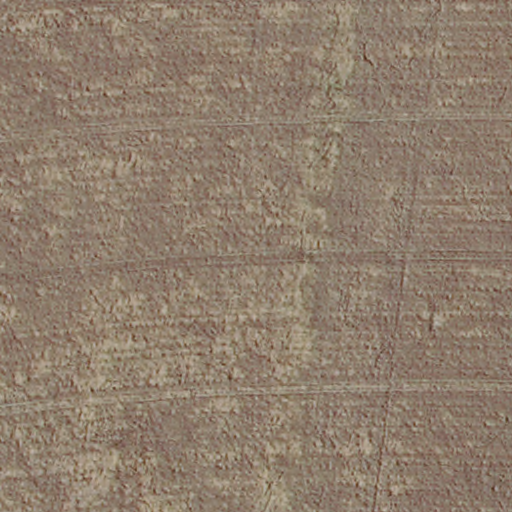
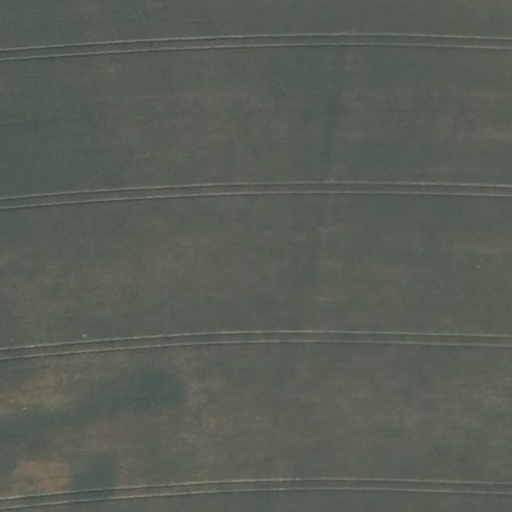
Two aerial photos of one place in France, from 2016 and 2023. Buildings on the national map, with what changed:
[]

